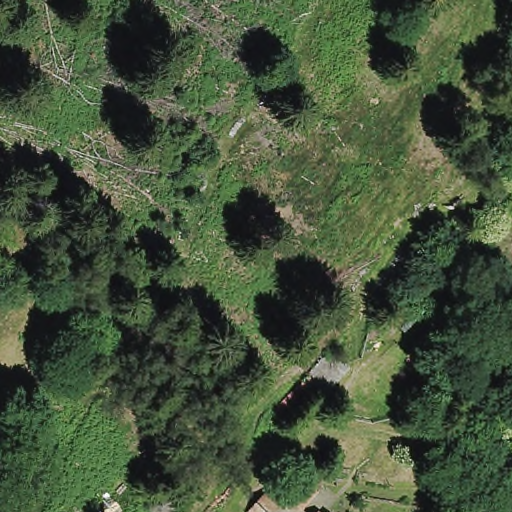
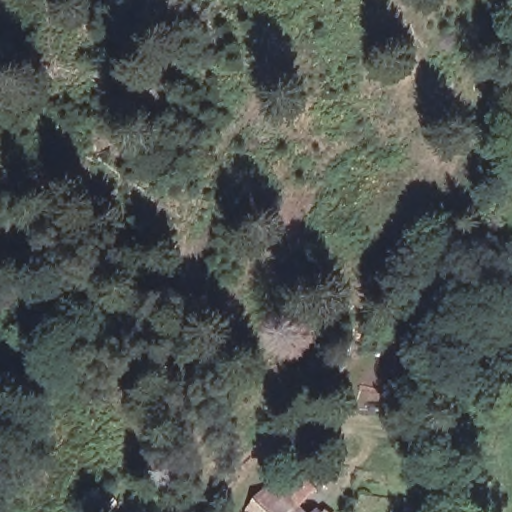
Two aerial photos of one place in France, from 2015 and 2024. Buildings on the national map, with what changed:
unchanged [(285,493),(305,512),(268,512),(285,493)]

